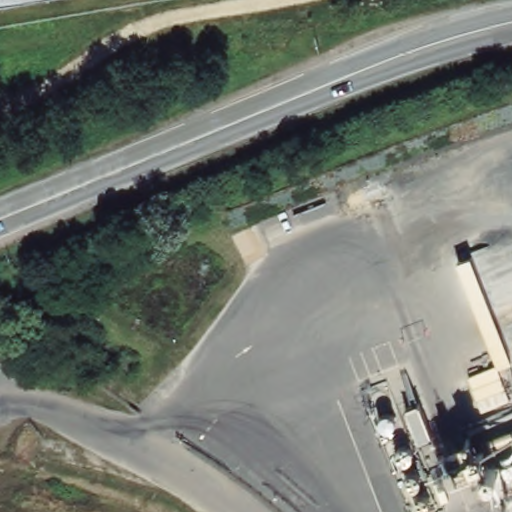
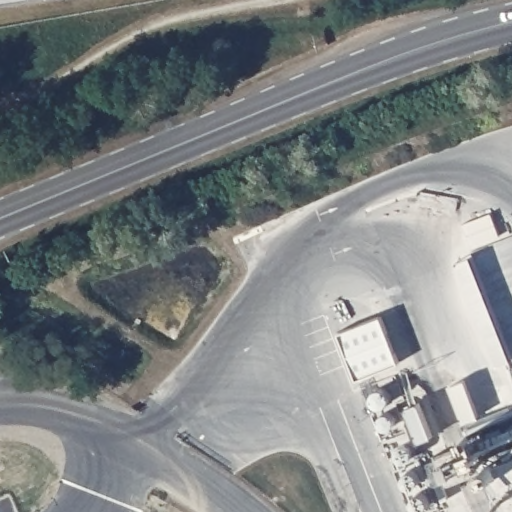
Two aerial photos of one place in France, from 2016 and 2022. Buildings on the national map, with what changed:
new [(381,316),(399,363),(357,379),(339,332),(381,316)]
unchanged [(497,446),(501,456),(512,452),(512,489),(494,497),(482,468),(448,481),(444,474),(427,481),(439,510),(435,512),(420,512),(405,476),(440,466),(437,458),(483,443),(481,438),(512,426),(512,441),(497,446)]

